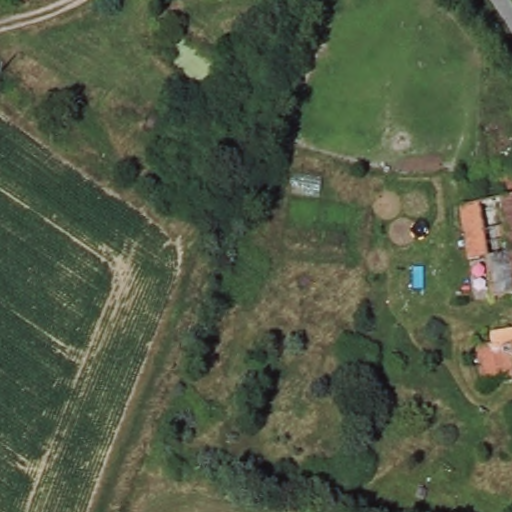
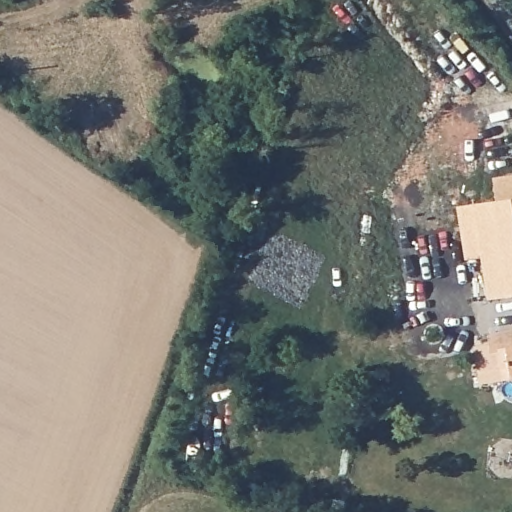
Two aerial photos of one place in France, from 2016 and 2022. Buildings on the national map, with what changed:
unchanged [(27,2),(24,0),(29,0),(27,2)]
new [(491,298),(485,257),(467,259),(460,205),(497,199),(495,179),(512,176),(512,295),(491,298)]
unchanged [(487,384),(481,346),(497,344),(498,349),(507,348),(505,332),(512,331),(512,380),(487,384)]

